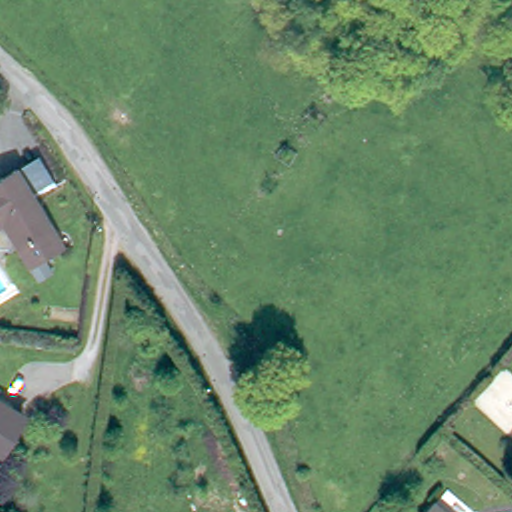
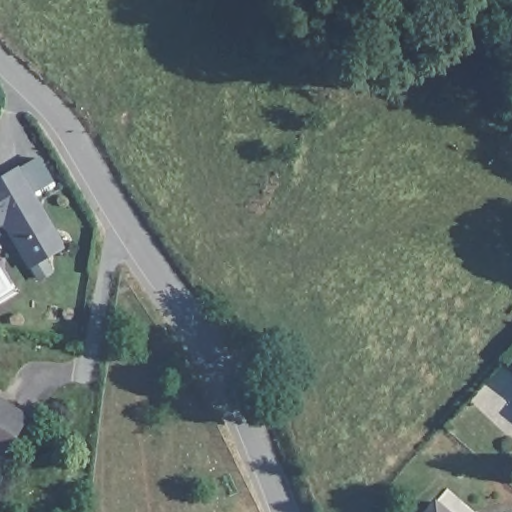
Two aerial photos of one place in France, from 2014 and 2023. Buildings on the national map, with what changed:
unchanged [(40,262),(13,216),(5,221),(0,213),(0,180),(25,164),(72,242),(52,254),(60,267),(47,273),(40,262)]
unchanged [(6,456),(0,452),(0,399),(29,416),(6,456)]
unchanged [(427,512),(440,497),(457,512),(427,512)]

